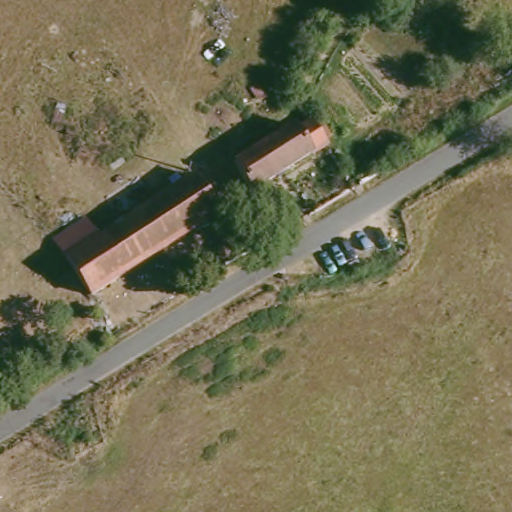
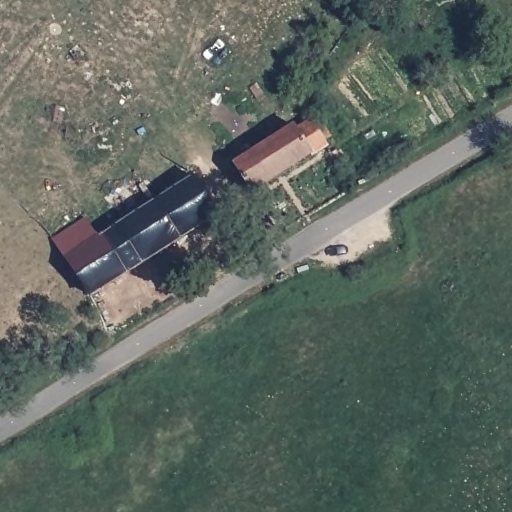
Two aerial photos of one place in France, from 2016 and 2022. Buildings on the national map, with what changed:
unchanged [(326,139),(251,187),(232,157),(292,120),(295,125),(311,114),(326,139)]
unchanged [(77,220),(90,237),(182,177),(206,215),(81,295),(57,259),(46,241),(77,220)]

